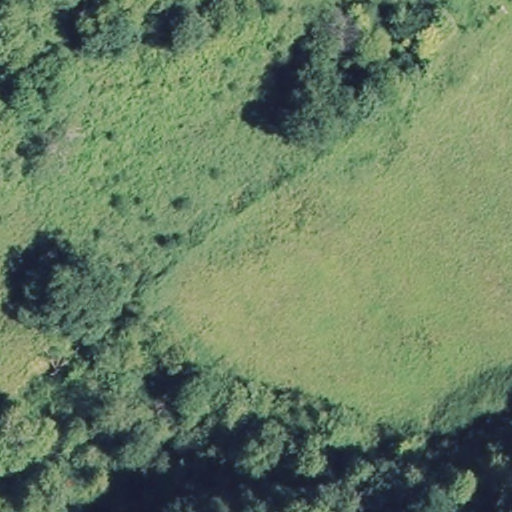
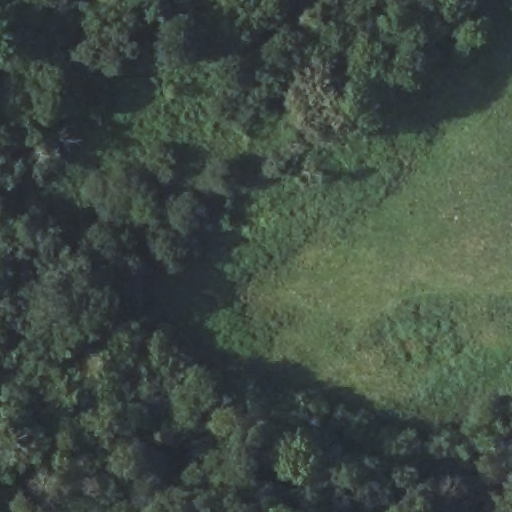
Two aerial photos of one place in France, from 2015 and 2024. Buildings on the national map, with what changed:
unchanged [(392,41),(429,8),(456,30),(414,58),(392,41)]

